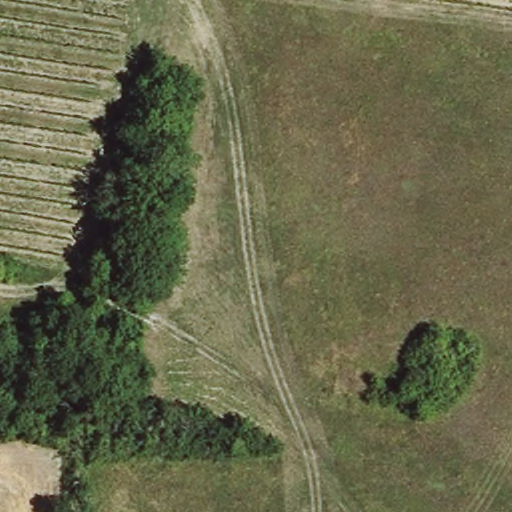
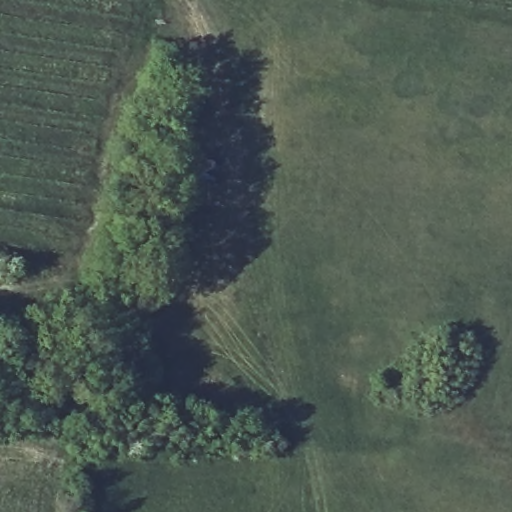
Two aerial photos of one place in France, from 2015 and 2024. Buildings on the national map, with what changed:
[]

